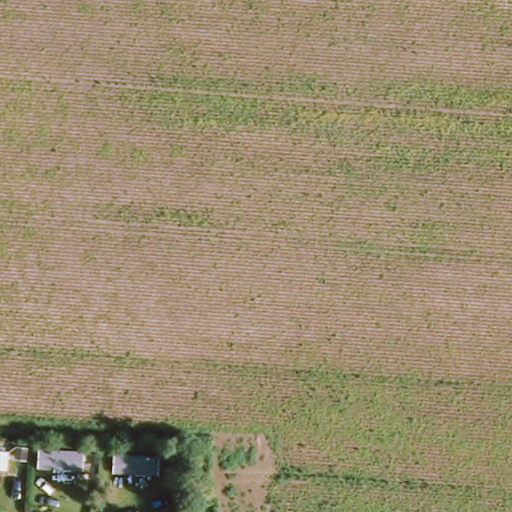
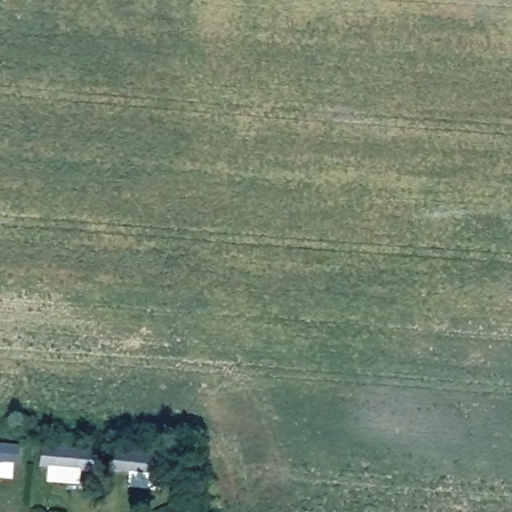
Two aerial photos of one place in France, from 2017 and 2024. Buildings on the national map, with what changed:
unchanged [(7,471),(0,471),(0,446),(10,446),(7,471)]
unchanged [(82,472),(37,468),(37,447),(83,450),(82,472)]
unchanged [(155,473),(109,469),(110,451),(157,455),(155,473)]

